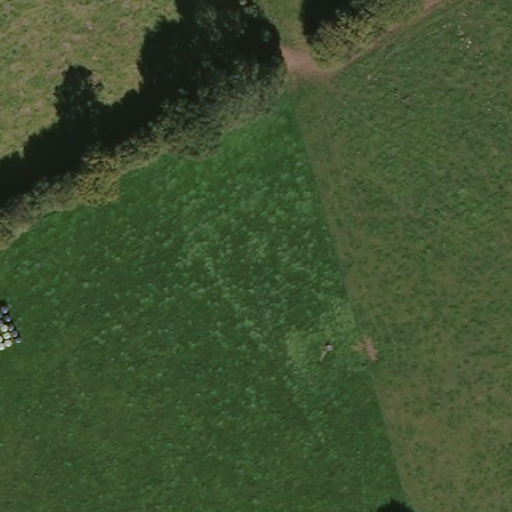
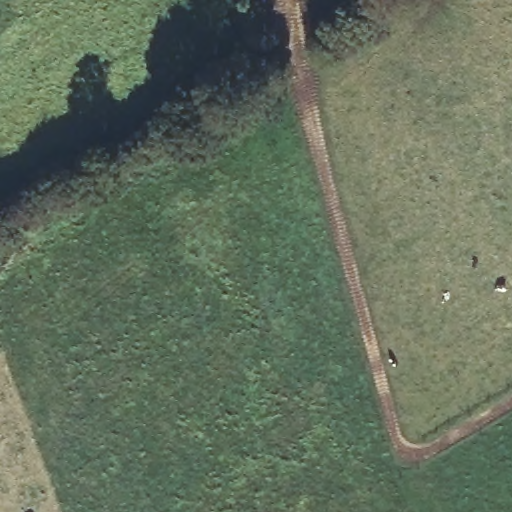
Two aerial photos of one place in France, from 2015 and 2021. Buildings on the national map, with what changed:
[]

